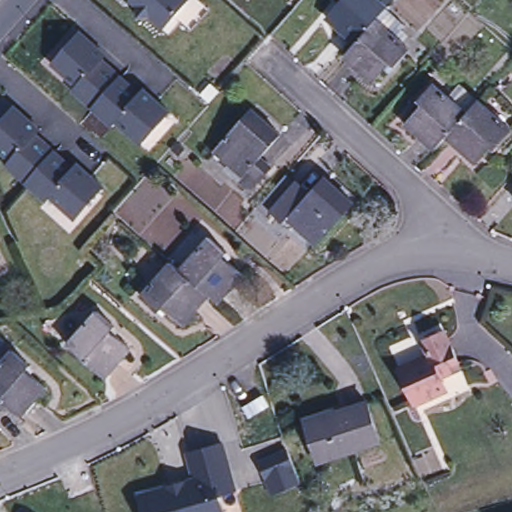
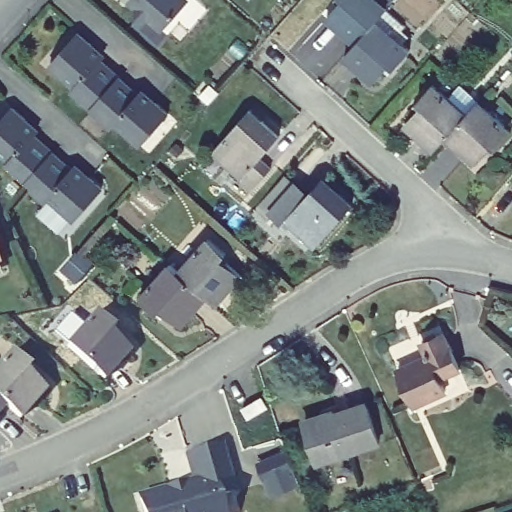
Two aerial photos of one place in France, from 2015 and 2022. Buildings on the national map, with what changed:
unchanged [(148,18),(137,18),(136,7),(130,1),(131,0),(190,0),(162,30),(148,18)]
unchanged [(336,0),(389,0),(385,5),(387,8),(385,9),(355,44),(325,18),(339,3),(336,0)]
unchanged [(385,9),(405,27),(395,39),(410,51),(390,73),(385,69),(372,84),(343,57),(355,44),(385,9)]
unchanged [(78,33),(105,56),(100,61),(138,94),(142,90),(169,114),(159,125),(140,146),(115,123),(110,128),(92,112),(90,110),(71,92),(75,87),(50,65),(78,33)]
unchanged [(405,120),(418,105),(413,101),(432,79),(448,93),(460,80),(477,96),(445,133),(434,146),(405,120)]
unchanged [(512,127),(493,148),(488,144),(475,159),(445,133),(477,96),(512,127)]
unchanged [(279,131),(258,155),(270,165),(250,188),(237,177),(241,172),(213,147),(250,105),(279,131)]
unchanged [(25,184),(5,167),(9,162),(0,154),(0,122),(12,108),(13,108),(38,130),(34,135),(37,137),(72,169),(76,164),(102,188),(74,220),(49,198),(45,203),(25,184)]
unchanged [(308,191),(323,174),(352,200),(315,241),(287,216),(282,220),(270,209),(266,212),(256,202),(284,172),(295,181),(295,180),(308,191)]
unchanged [(227,253),(222,259),(242,276),(216,305),(207,297),(179,271),(210,238),(227,253)]
unchanged [(179,271),(207,297),(181,326),(162,309),(158,313),(140,297),(170,264),(179,271)]
unchanged [(97,312),(115,328),(110,332),(130,350),(105,378),(67,344),(97,312)]
unchanged [(428,355),(421,342),(443,332),(460,370),(440,380),(446,392),(415,406),(398,369),(428,355)]
unchanged [(30,363),(27,366),(47,383),(20,412),(5,399),(0,395),(0,361),(12,347),(30,363)]
unchanged [(5,399),(0,406),(0,395),(5,399)]
unchanged [(267,406),(248,417),(243,408),(262,397),(267,406)]
unchanged [(365,403),(378,443),(317,464),(305,423),(365,403)]
unchanged [(190,449),(225,440),(227,449),(237,486),(221,491),(227,512),(149,512),(143,491),(198,476),(193,459),(190,449)]
unchanged [(260,462),(286,451),(290,460),(293,466),(266,478),(260,462)]

